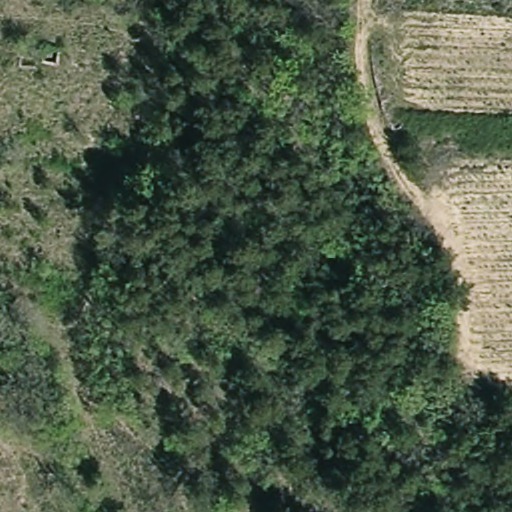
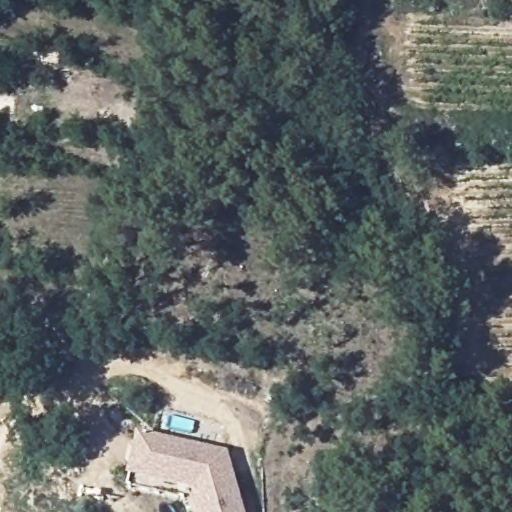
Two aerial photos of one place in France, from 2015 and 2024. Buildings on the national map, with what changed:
unchanged [(57,47),(57,65),(43,64),(44,45),(57,47)]
new [(138,434),(228,452),(245,512),(186,512),(182,498),(127,489),(128,478),(138,434)]

